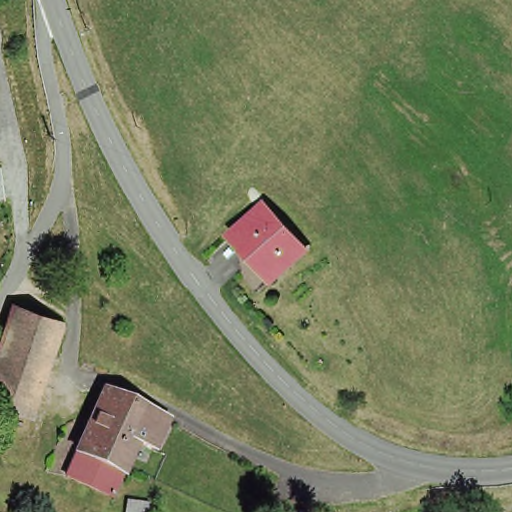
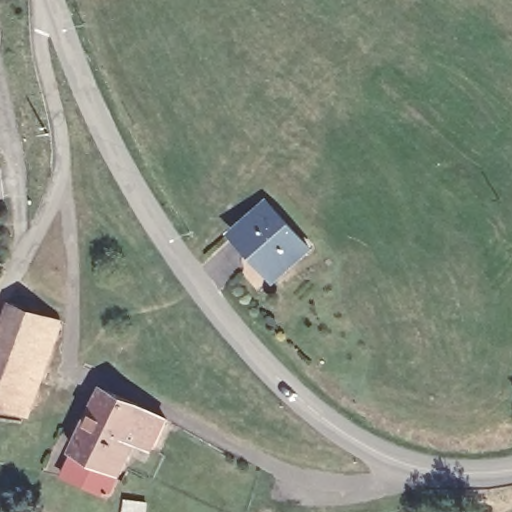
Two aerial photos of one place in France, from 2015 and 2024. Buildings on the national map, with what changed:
unchanged [(238,232),(272,201),(311,244),(281,271),(264,253),(260,256),(238,232)]
unchanged [(0,359),(17,309),(62,325),(30,414),(28,421),(0,411),(0,359)]
unchanged [(64,483),(82,445),(90,425),(105,397),(149,417),(166,426),(152,458),(134,449),(109,504),(64,483)]
unchanged [(124,512),(126,502),(148,505),(147,512),(124,512)]

